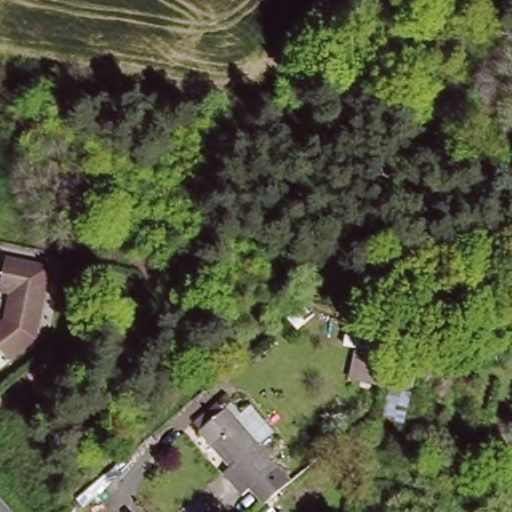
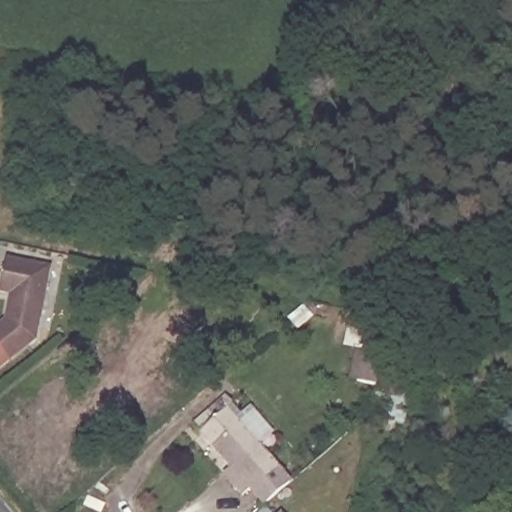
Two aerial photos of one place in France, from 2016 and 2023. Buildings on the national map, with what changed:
unchanged [(50,263),(34,340),(13,356),(0,342),(0,324),(9,316),(16,291),(4,288),(14,256),(50,263)]
unchanged [(376,330),(383,351),(371,388),(344,380),(351,352),(343,354),(339,340),(376,330)]
unchanged [(412,382),(401,425),(379,420),(388,377),(412,382)]
unchanged [(224,413),(269,466),(243,486),(199,434),(224,413)]
unchanged [(302,443),(326,423),(329,427),(343,442),(319,462),(306,448),(302,443)]
unchanged [(281,512),(279,512),(281,511),(281,512)]

